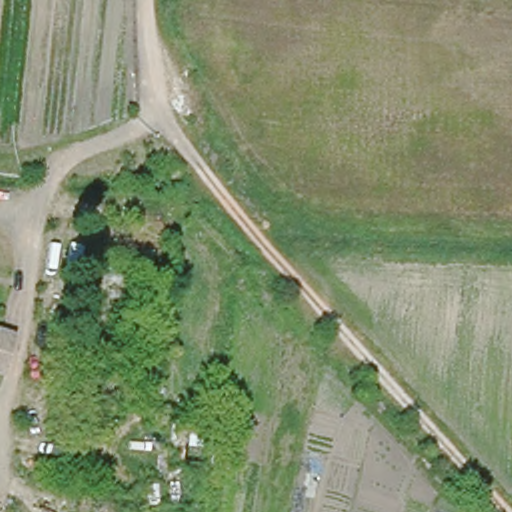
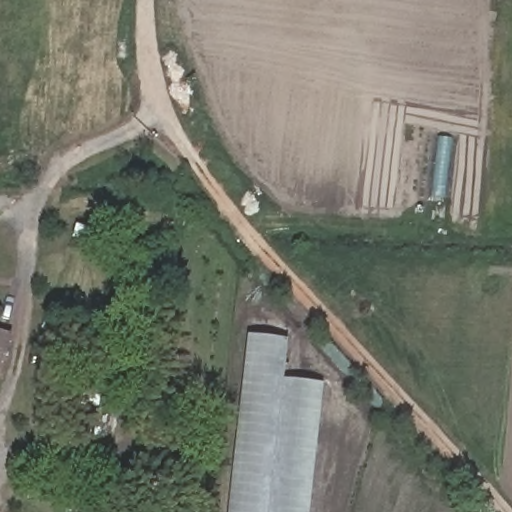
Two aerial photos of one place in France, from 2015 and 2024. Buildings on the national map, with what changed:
unchanged [(97,263),(132,265),(128,322),(93,319),(97,263)]
unchanged [(66,353),(71,303),(93,306),(89,330),(117,334),(116,359),(66,353)]
unchanged [(0,336),(0,333),(1,333),(0,336)]
new [(248,333),(288,337),(283,378),(323,381),(309,512),(228,512),(248,333)]

